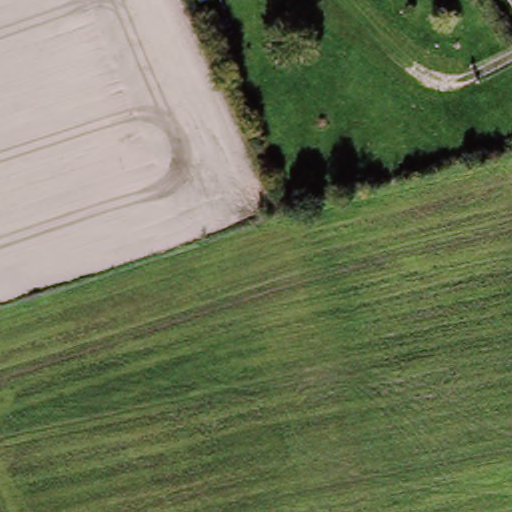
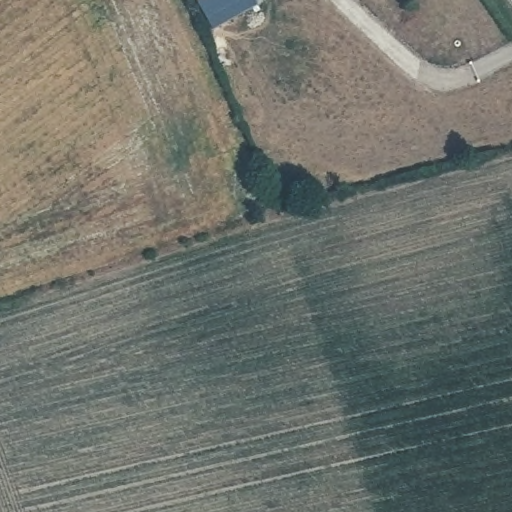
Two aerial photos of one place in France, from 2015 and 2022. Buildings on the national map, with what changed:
new [(213,31),(198,2),(197,0),(257,0),(259,5),(213,31)]

